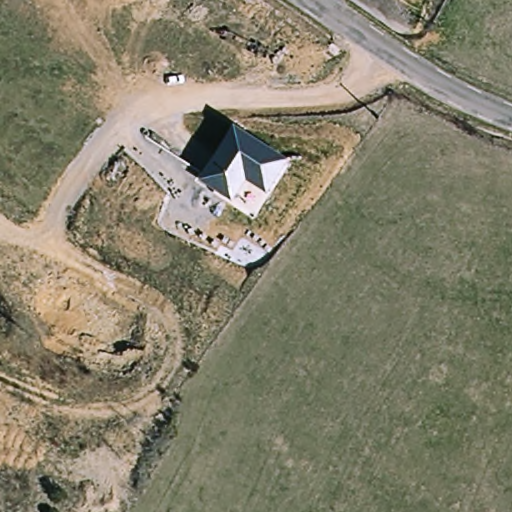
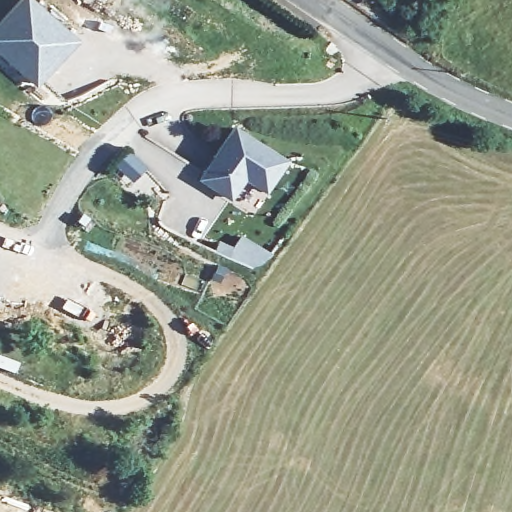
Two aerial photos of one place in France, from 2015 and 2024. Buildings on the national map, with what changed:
new [(36,87),(0,56),(0,19),(16,0),(32,0),(77,40),(36,87)]
unchanged [(290,161),(267,196),(245,182),(232,202),(196,179),(232,126),(290,161)]

